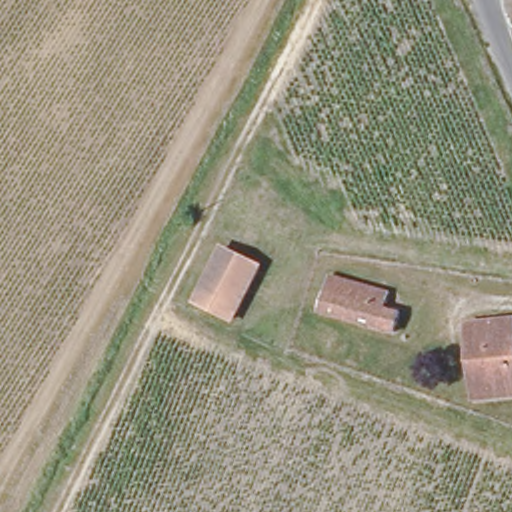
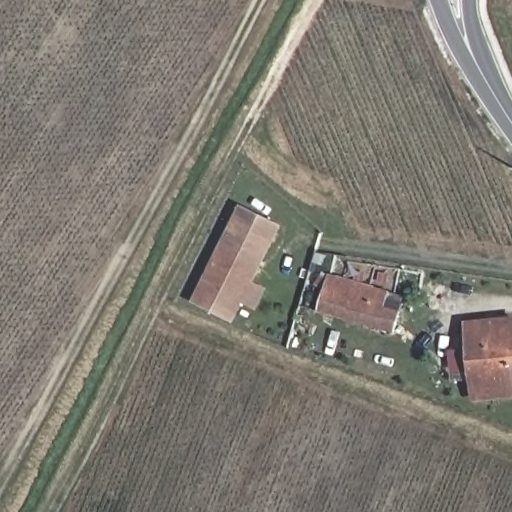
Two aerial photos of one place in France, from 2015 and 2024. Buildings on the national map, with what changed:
new [(222,246),(239,205),(282,227),(259,263),(222,246)]
unchanged [(257,311),(243,302),(235,320),(197,300),(222,246),(259,263),(251,282),(267,288),(257,311)]
unchanged [(388,293),(384,310),(398,313),(391,334),(317,316),(329,277),(388,293)]
unchanged [(467,405),(459,333),(477,332),(477,316),(512,312),(512,359),(509,360),(512,377),(512,399),(467,405)]

